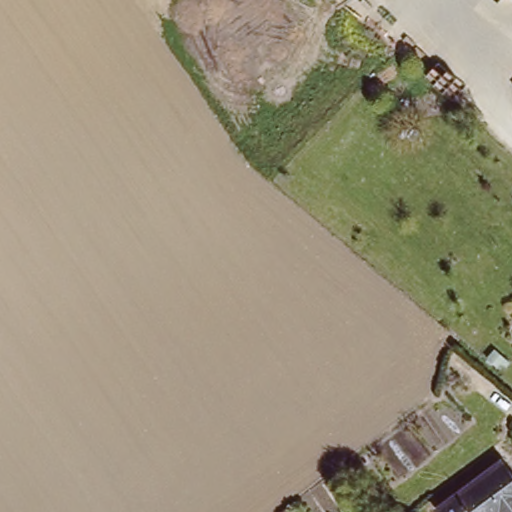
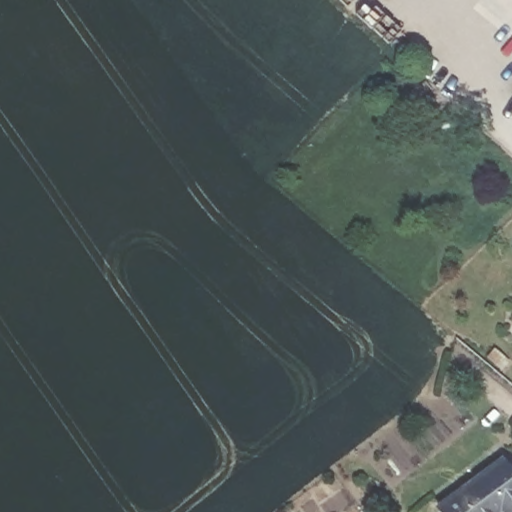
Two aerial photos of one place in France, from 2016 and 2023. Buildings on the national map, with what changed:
unchanged [(437,502),(501,457),(512,472),(512,512),(444,512),(437,502)]

